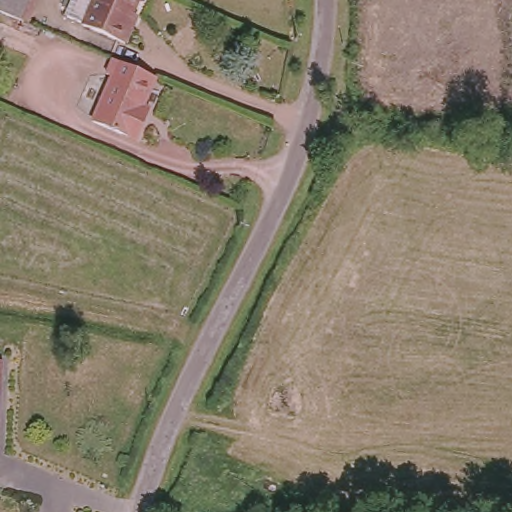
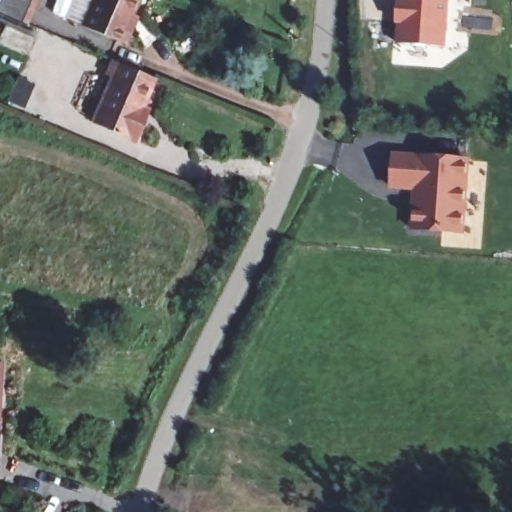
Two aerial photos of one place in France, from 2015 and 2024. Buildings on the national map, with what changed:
unchanged [(0,14),(0,0),(31,0),(22,23),(0,14)]
unchanged [(130,29),(125,42),(65,17),(72,0),(133,0),(122,26),(130,29)]
new [(395,45),(397,0),(449,0),(445,48),(395,45)]
unchanged [(143,107),(138,119),(145,123),(136,142),(92,122),(110,78),(105,76),(113,57),(157,76),(143,107)]
new [(462,175),(468,176),(465,235),(409,231),(412,191),(388,189),(391,153),(463,158),(462,175)]

